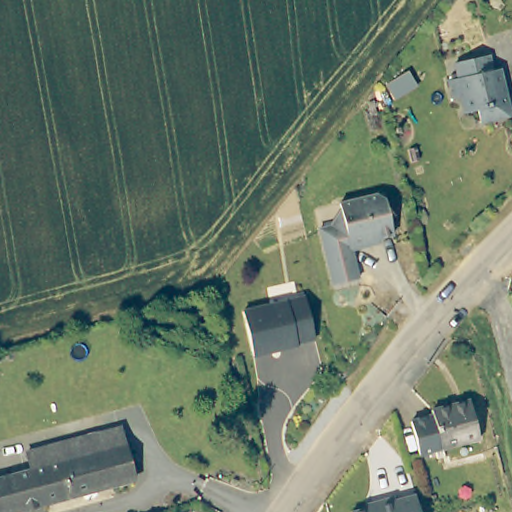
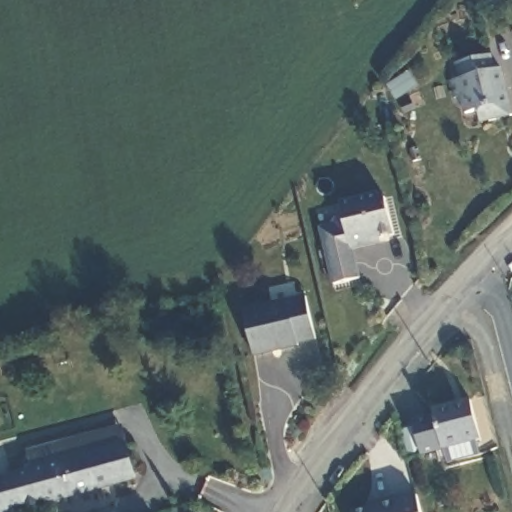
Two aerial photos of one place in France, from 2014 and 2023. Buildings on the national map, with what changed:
unchanged [(487,119),(484,107),(464,111),(460,94),(453,96),(449,79),(459,77),(455,61),(489,53),(493,69),(500,67),(511,113),(487,119)]
unchanged [(380,195),(389,232),(368,237),(369,242),(347,247),(354,276),(328,282),(314,227),(334,222),(338,216),(334,201),(358,195),(374,192),(380,195)]
unchanged [(300,297),(310,337),(292,341),(293,345),(250,355),(240,312),(300,297)]
unchanged [(425,453),(416,422),(435,417),(433,410),(468,400),(479,438),(425,453)]
unchanged [(30,448),(122,422),(126,440),(138,437),(145,460),(133,462),(136,474),(26,507),(14,470),(35,463),(30,448)]
unchanged [(26,507),(10,512),(0,512),(0,474),(14,470),(26,507)]
unchanged [(417,512),(348,512),(347,510),(373,503),(372,500),(391,495),(392,498),(412,493),(417,512)]

